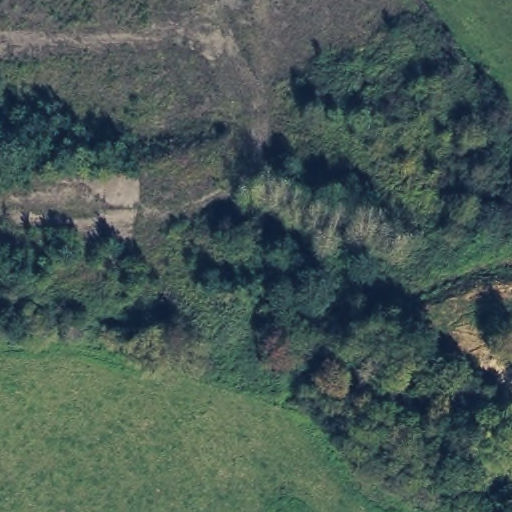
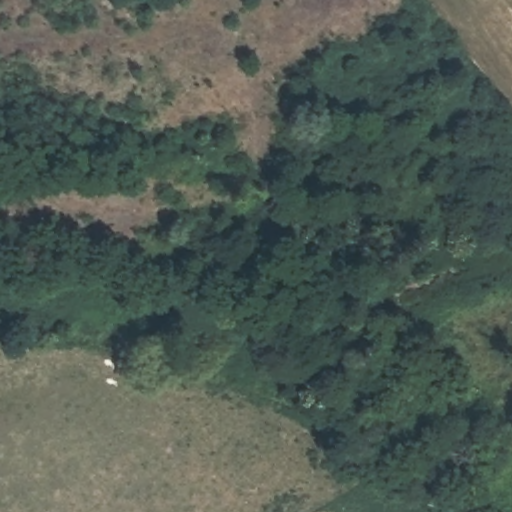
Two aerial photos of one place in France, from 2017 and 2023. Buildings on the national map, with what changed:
unchanged [(305,156),(314,147),(327,159),(317,168),(305,156)]

